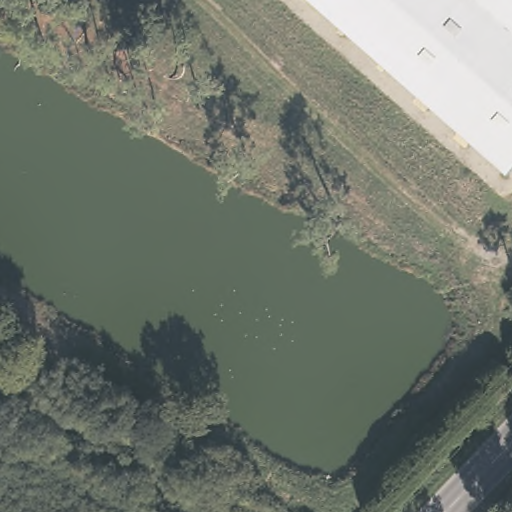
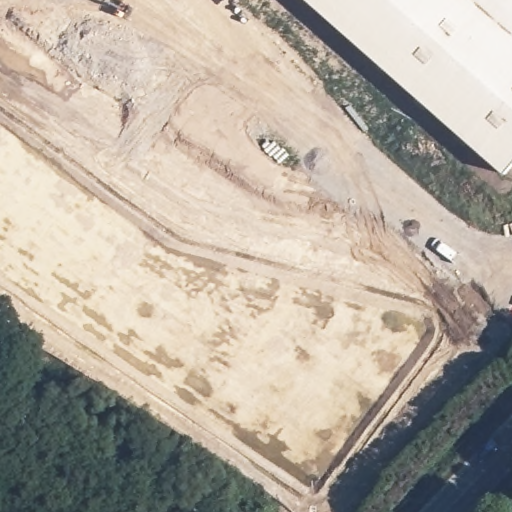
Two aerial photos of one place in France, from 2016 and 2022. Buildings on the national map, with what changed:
unchanged [(512,161),(503,170),(374,57),(309,0),(512,0),(512,161)]

